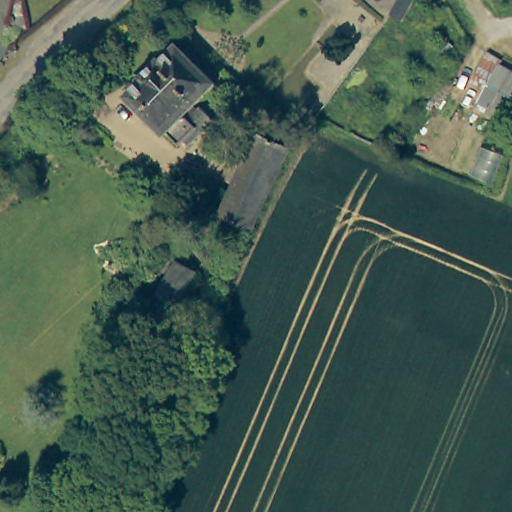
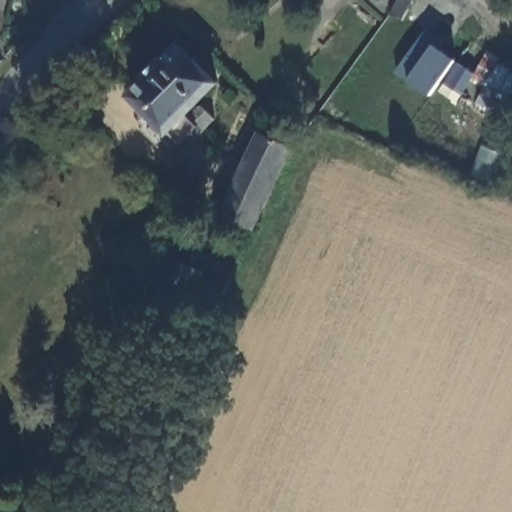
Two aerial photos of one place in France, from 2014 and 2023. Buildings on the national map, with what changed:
unchanged [(402,21),(389,12),(398,0),(417,0),(402,21)]
new [(429,98),(408,80),(398,72),(423,35),(435,45),(457,60),(429,98)]
unchanged [(213,78),(182,109),(195,123),(188,129),(193,134),(184,142),(179,138),(178,141),(166,130),(164,132),(124,95),(141,77),(138,74),(144,69),(149,64),(158,54),(160,56),(176,41),(213,78)]
unchanged [(509,115),(481,102),(487,90),(474,84),(489,52),(504,59),(502,65),(512,70),(512,108),(509,115)]
unchanged [(254,230),(223,215),(260,134),(291,148),(254,230)]
unchanged [(199,274),(179,305),(159,293),(180,261),(199,274)]

